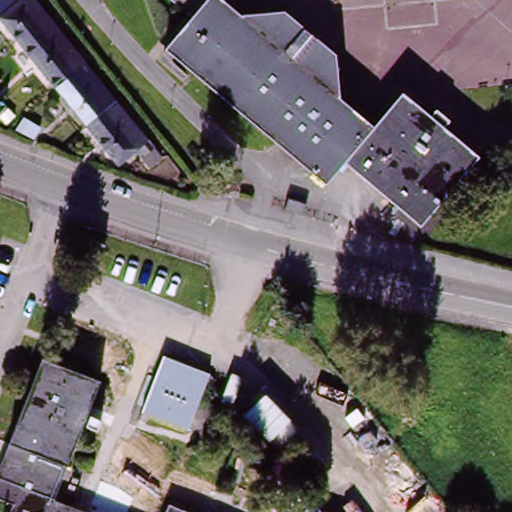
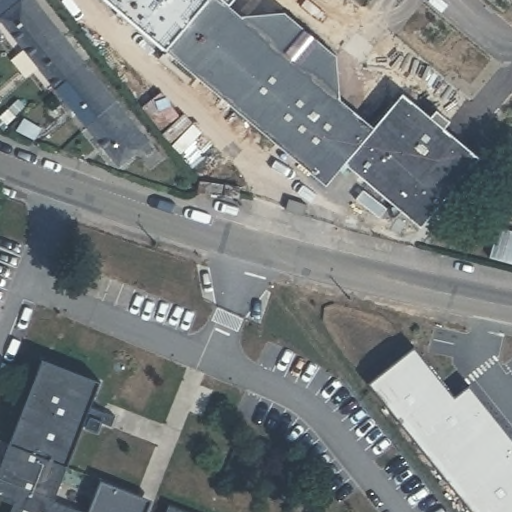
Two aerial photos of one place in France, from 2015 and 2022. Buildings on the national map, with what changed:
unchanged [(0,24),(0,10),(12,0),(15,0),(25,10),(30,5),(37,15),(43,12),(82,61),(51,86),(0,24)]
unchanged [(235,17),(277,10),(325,52),(328,98),(363,126),(392,92),(419,114),(424,107),(437,120),(432,126),(467,156),(409,223),(335,160),(315,182),(156,45),(183,17),(164,0),(214,0),(235,17)]
unchanged [(82,124),(51,86),(82,61),(113,100),(82,124)]
unchanged [(150,147),(142,153),(136,146),(115,164),(82,124),(113,100),(150,147)]
unchanged [(215,177),(213,189),(192,186),(193,175),(215,177)]
unchanged [(220,177),(241,180),(239,194),(217,190),(220,177)]
new [(470,386),(512,438),(512,512),(475,512),(371,383),(415,348),(455,397),(470,386)]
unchanged [(36,512),(20,507),(0,498),(0,469),(44,359),(103,382),(54,498),(48,512),(36,512)]
demolished [(210,377),(190,437),(139,418),(157,360),(210,377)]
unchanged [(89,512),(48,512),(54,498),(89,512)]
unchanged [(183,512),(164,512),(167,506),(183,512)]
unchanged [(36,512),(18,512),(20,507),(36,512)]

